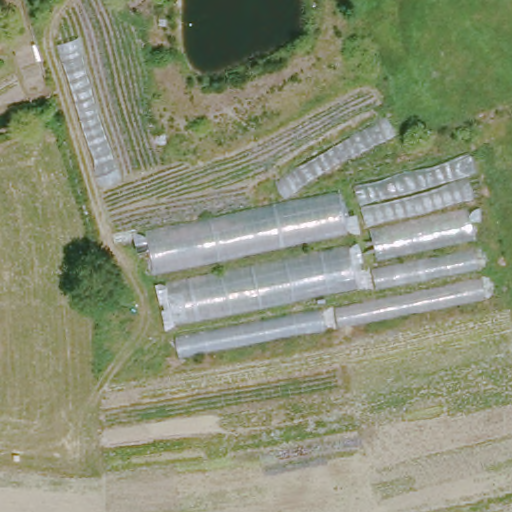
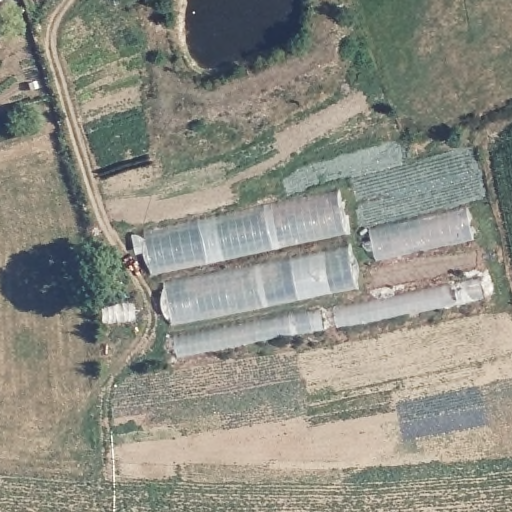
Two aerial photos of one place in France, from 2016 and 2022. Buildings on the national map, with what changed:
unchanged [(163,282),(162,275),(155,276),(147,233),(342,193),(351,245),(163,282)]
unchanged [(163,282),(351,245),(371,241),(369,231),(475,206),(478,219),(470,222),(483,300),(332,331),(333,338),(324,340),(322,330),(201,351),(202,360),(177,364),(163,282)]

